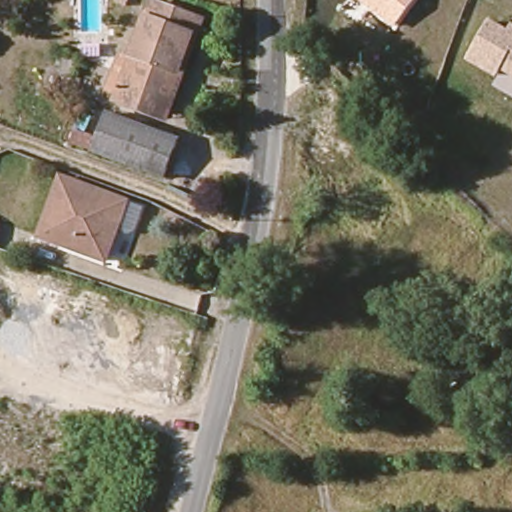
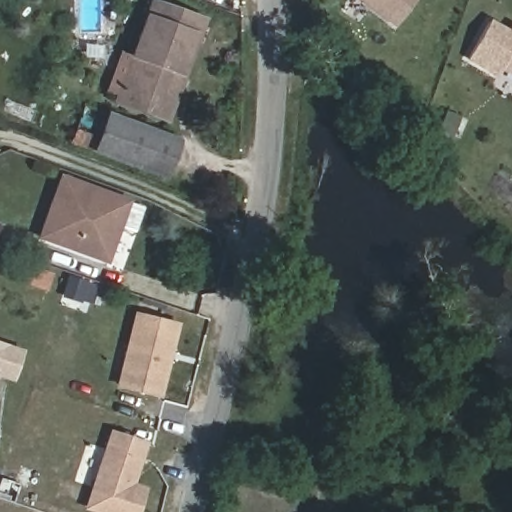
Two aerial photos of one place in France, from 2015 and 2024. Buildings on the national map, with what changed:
unchanged [(360,0),(416,0),(395,27),(360,0)]
unchanged [(158,116),(118,101),(120,97),(110,92),(124,52),(135,56),(155,2),(205,22),(199,39),(169,120),(158,116)]
unchanged [(502,70),(496,79),(466,60),(492,20),(510,31),(512,27),(512,75),(502,70)]
unchanged [(163,179),(92,152),(106,114),(177,140),(163,179)]
unchanged [(32,237),(54,177),(116,200),(137,207),(129,232),(122,235),(111,230),(100,262),(32,237)]
new [(132,313),(172,323),(155,394),(115,384),(132,313)]
new [(0,379),(0,344),(21,351),(12,377),(0,379)]
new [(132,486),(144,489),(137,512),(106,512),(88,506),(111,433),(145,443),(132,486)]

